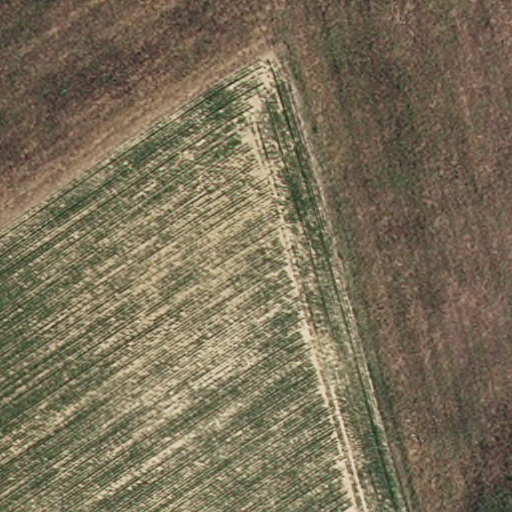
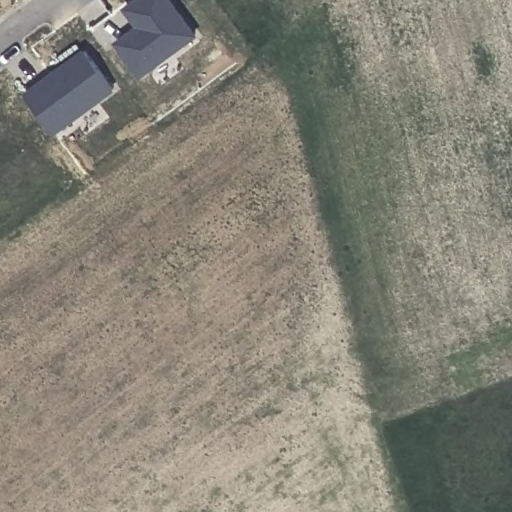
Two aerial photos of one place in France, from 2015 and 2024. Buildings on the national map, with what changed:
new [(137,26),(124,7),(134,0),(174,0),(200,35),(142,77),(115,42),(137,26)]
new [(25,92),(85,49),(115,91),(55,135),(25,92)]

